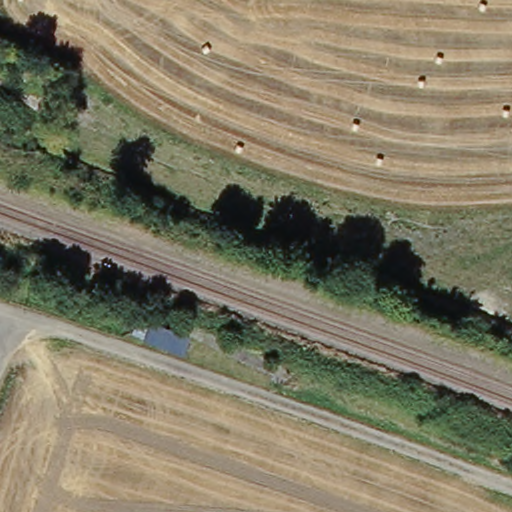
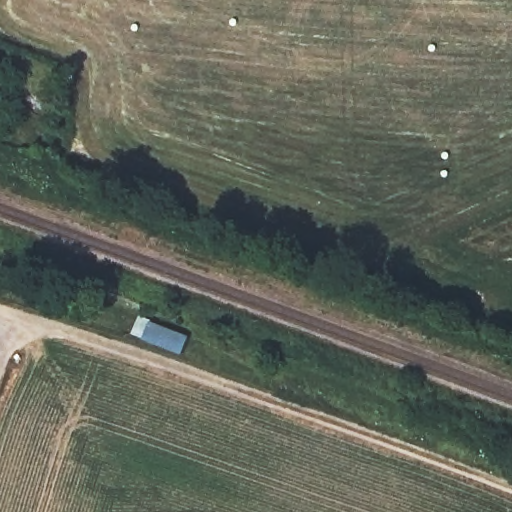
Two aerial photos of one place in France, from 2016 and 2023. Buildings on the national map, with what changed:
unchanged [(49,68),(59,72),(49,100),(38,95),(49,68)]
unchanged [(139,318),(150,322),(189,337),(181,355),(143,339),(131,335),(139,318)]

